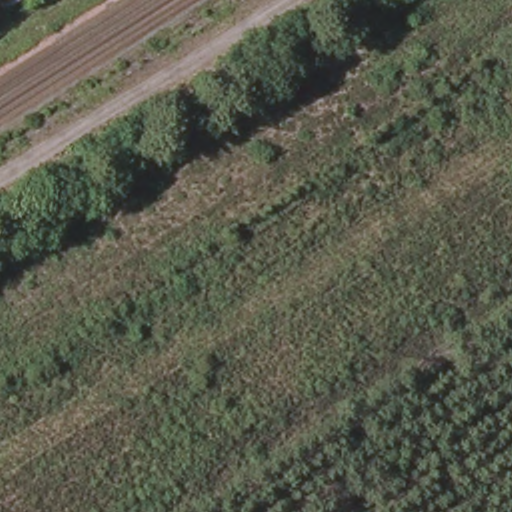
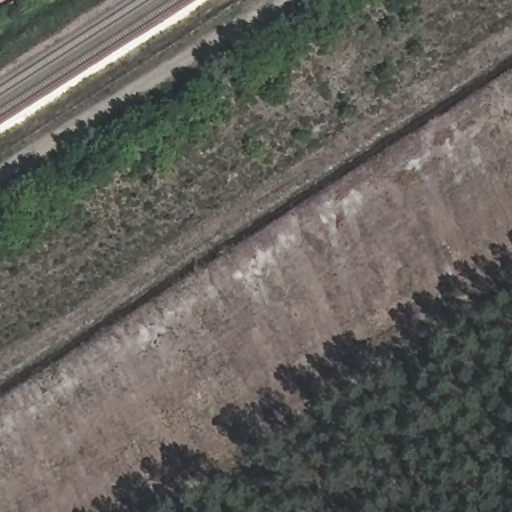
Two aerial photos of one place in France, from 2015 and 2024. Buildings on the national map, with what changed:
unchanged [(4,1),(3,0),(5,0),(4,1)]

